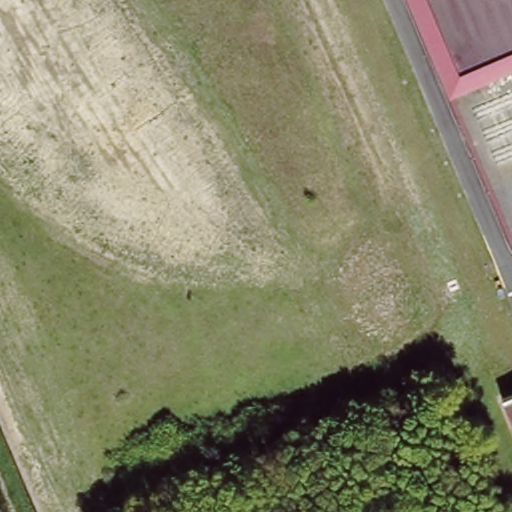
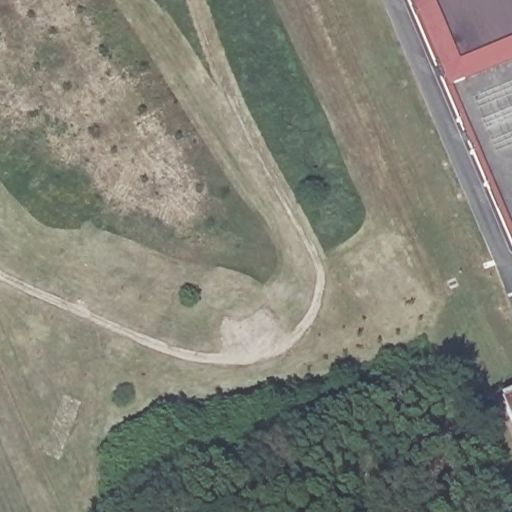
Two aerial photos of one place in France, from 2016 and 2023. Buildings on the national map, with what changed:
unchanged [(512,0),(512,240),(410,0),(512,0)]
unchanged [(512,388),(512,419),(501,393),(512,388)]

